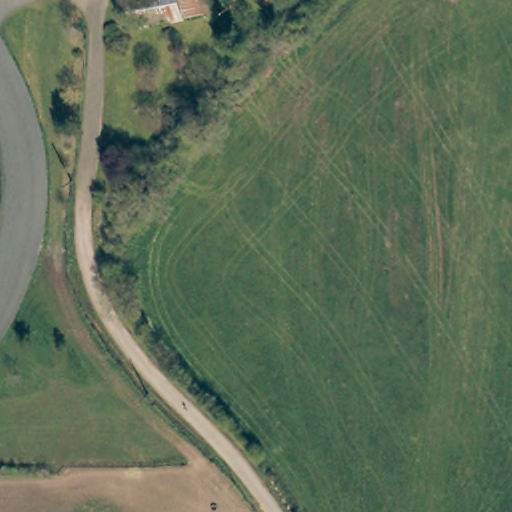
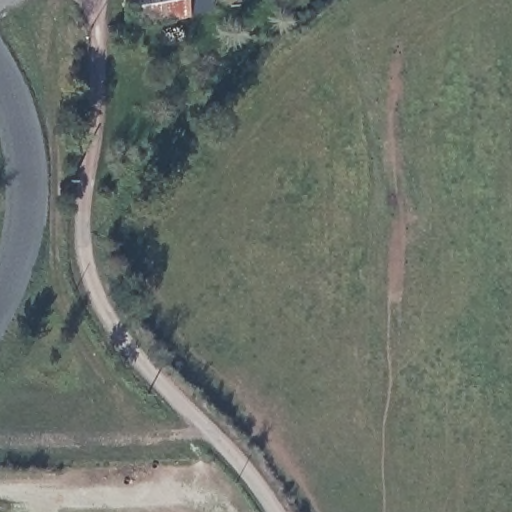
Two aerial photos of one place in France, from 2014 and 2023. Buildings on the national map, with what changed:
unchanged [(125,0),(210,0),(211,10),(185,15),(128,23),(125,0)]

